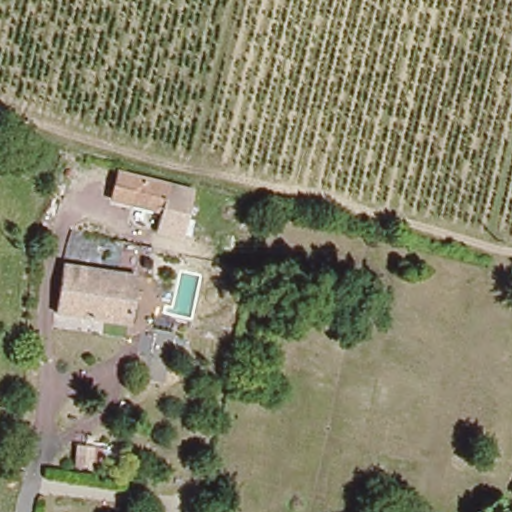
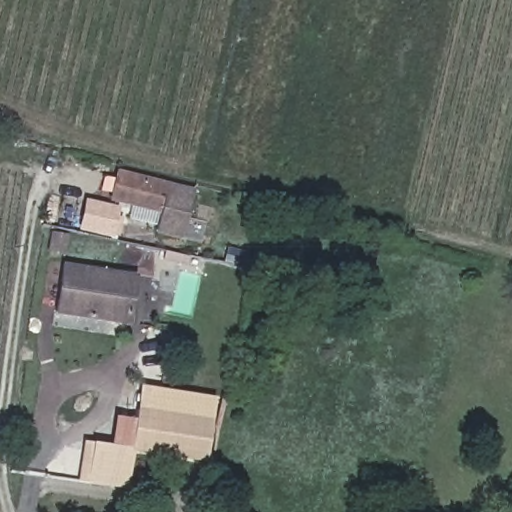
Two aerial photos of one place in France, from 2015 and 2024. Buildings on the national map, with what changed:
unchanged [(117,175),(164,186),(159,209),(112,199),(117,175)]
unchanged [(194,192),(184,239),(153,233),(159,209),(164,186),(194,192)]
unchanged [(59,264),(132,276),(124,325),(51,313),(59,264)]
new [(211,419),(205,462),(132,452),(127,488),(77,481),(83,440),(131,447),(137,407),(211,419)]

